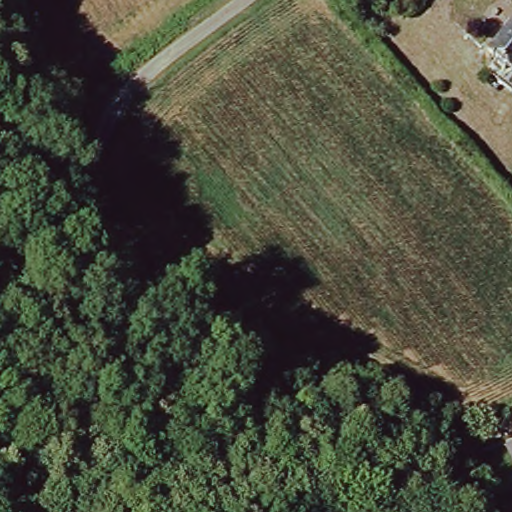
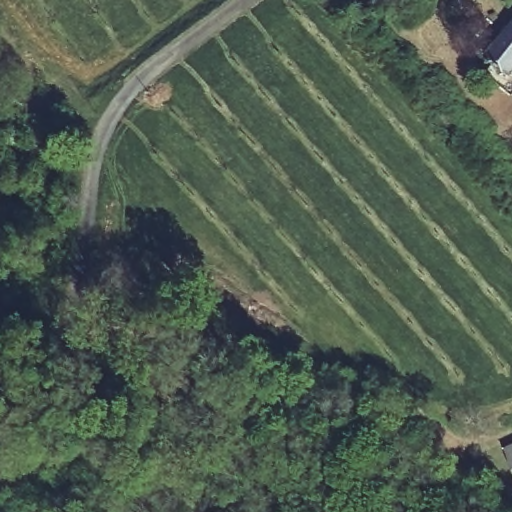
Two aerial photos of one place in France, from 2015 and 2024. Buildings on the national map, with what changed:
unchanged [(502,90),(487,76),(498,62),(494,58),(512,35),(512,78),(502,90)]
unchanged [(507,457),(512,454),(512,465),(507,457)]

